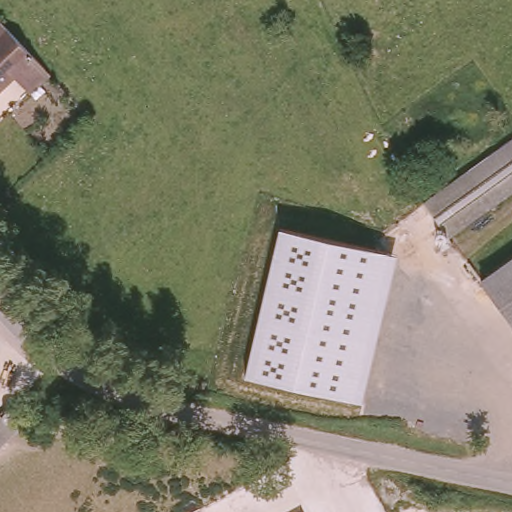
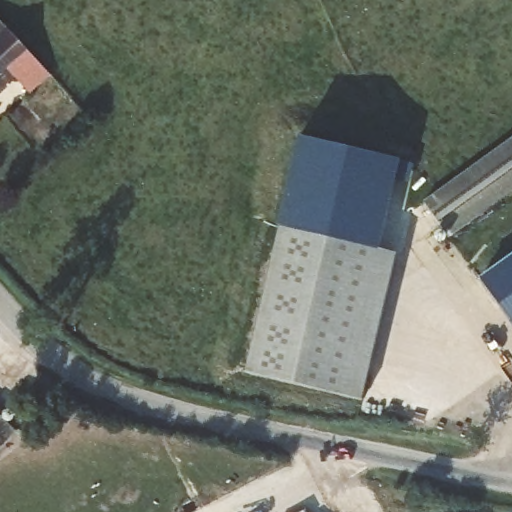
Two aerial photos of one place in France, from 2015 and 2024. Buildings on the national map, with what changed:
unchanged [(15,79),(0,94),(0,26),(7,34),(49,76),(30,94),(15,79)]
new [(300,136),(400,161),(379,250),(280,225),(300,136)]
unchanged [(512,140),(512,193),(449,237),(425,201),(512,140)]
unchanged [(280,225),(397,254),(362,402),(246,374),(280,225)]
unchanged [(512,316),(482,273),(512,252),(512,316)]
unchanged [(20,434),(0,453),(0,413),(20,434)]
unchanged [(301,512),(300,512),(300,511),(301,512)]

